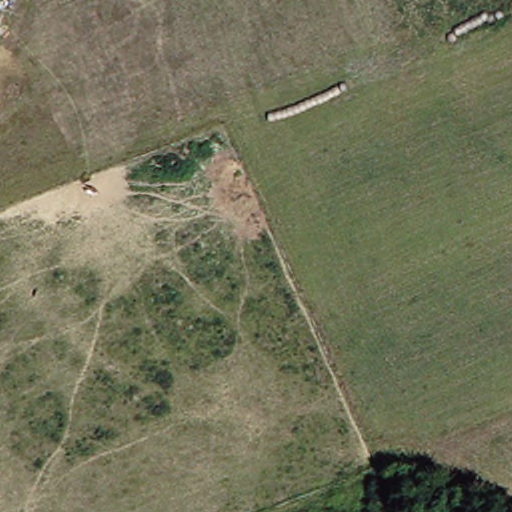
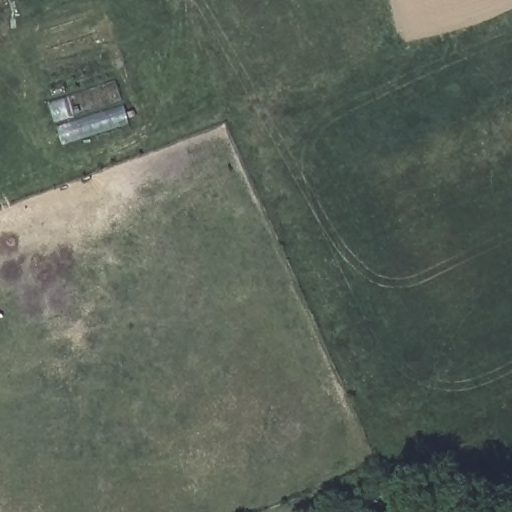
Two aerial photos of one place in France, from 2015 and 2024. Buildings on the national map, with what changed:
[]

